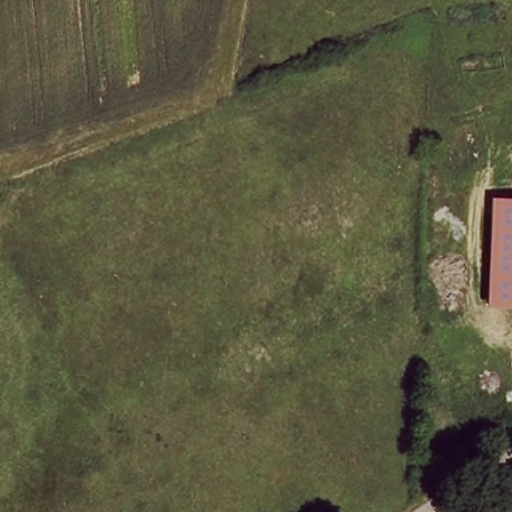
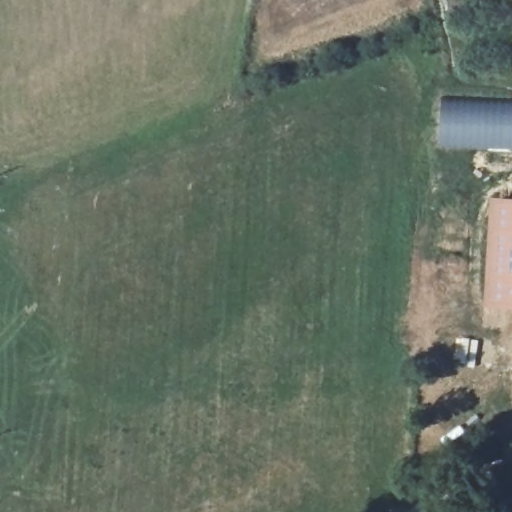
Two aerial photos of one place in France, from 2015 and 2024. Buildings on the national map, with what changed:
new [(512,99),(512,151),(437,149),(439,96),(512,99)]
unchanged [(491,197),(512,198),(512,309),(485,307),(491,197)]

